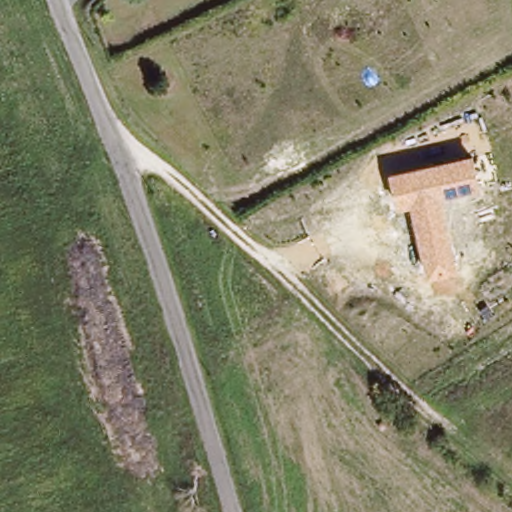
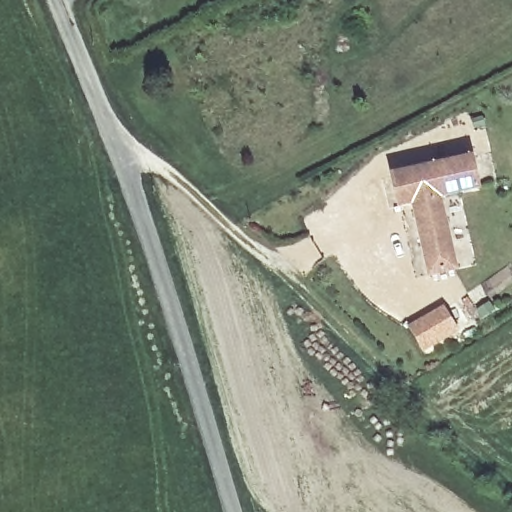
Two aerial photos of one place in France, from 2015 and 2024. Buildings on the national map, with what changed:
unchanged [(481,192),(444,200),(460,273),(428,280),(412,207),(397,210),(391,174),(473,156),(481,192)]
new [(443,306),(457,329),(450,334),(425,349),(411,326),(436,310),(443,306)]

